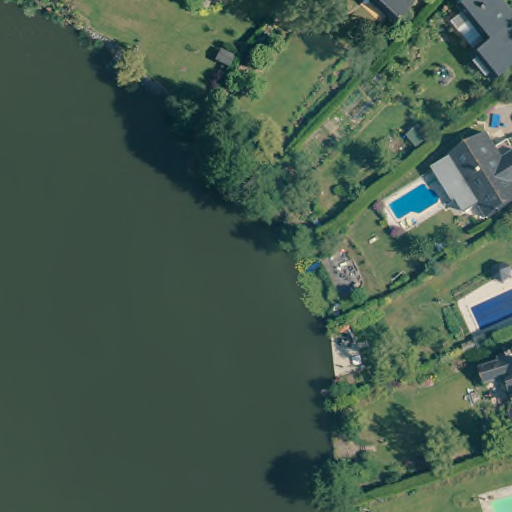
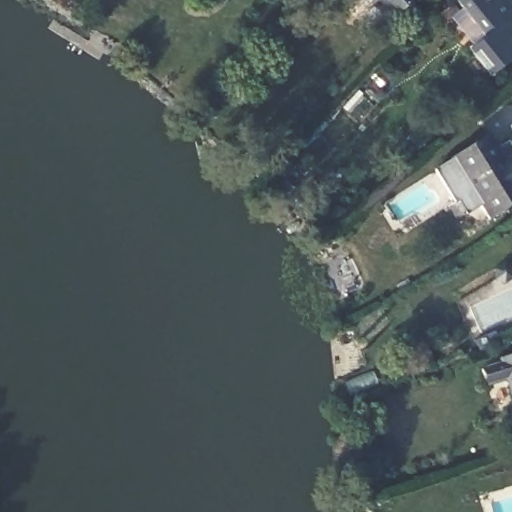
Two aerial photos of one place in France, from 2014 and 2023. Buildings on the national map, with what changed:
unchanged [(387,20),(370,0),(411,0),(387,20)]
unchanged [(477,41),(455,15),(466,6),(461,0),(511,0),(512,1),(512,58),(496,71),(473,46),(477,41)]
unchanged [(480,215),(448,150),(490,128),(503,154),(512,150),(512,198),(480,215)]
unchanged [(507,375),(486,382),(481,370),(502,362),(501,359),(512,356),(512,390),(507,375)]
unchanged [(509,408),(512,407),(512,417),(509,408)]

